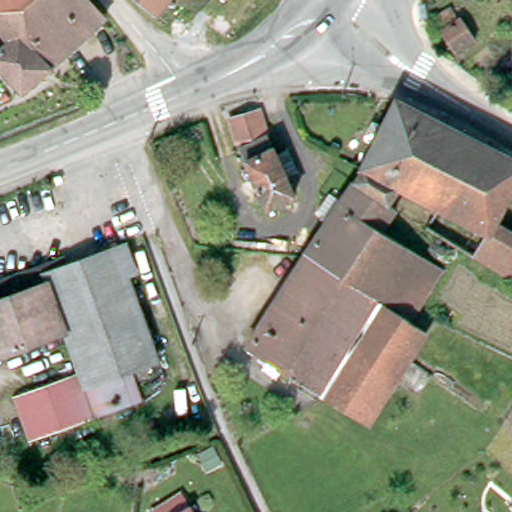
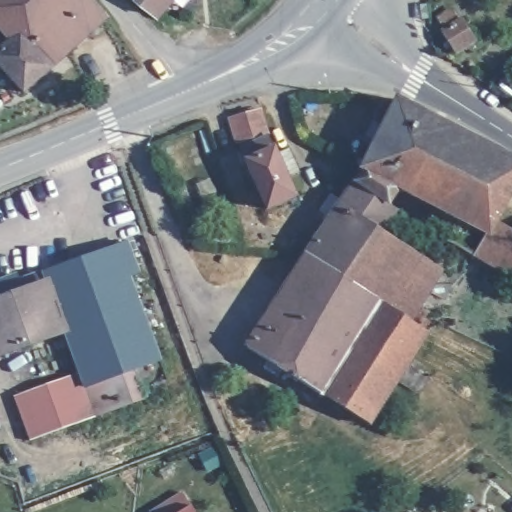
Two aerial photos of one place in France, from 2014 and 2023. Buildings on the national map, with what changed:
unchanged [(23,89),(0,63),(0,36),(5,41),(18,30),(11,21),(2,29),(0,26),(0,0),(93,0),(106,15),(67,49),(23,89)]
unchanged [(141,0),(165,0),(156,11),(141,0)]
unchanged [(428,22),(420,22),(417,5),(426,4),(428,22)]
unchanged [(440,32),(445,30),(437,17),(450,10),(457,21),(462,19),(476,40),(454,54),(440,32)]
unchanged [(501,206),(489,231),(440,206),(401,185),(390,201),(355,177),(362,166),(361,165),(375,137),(366,132),(373,117),(382,123),(396,95),(512,155),(512,184),(501,206)]
unchanged [(262,106),(269,130),(237,140),(230,115),(262,106)]
unchanged [(267,205),(240,145),(269,132),(277,150),(289,145),(299,170),(287,175),(296,193),(267,205)]
unchanged [(306,250),(355,177),(390,201),(397,206),(382,227),(442,265),(410,317),(306,250)]
unchanged [(460,245),(426,224),(440,206),(489,231),(501,206),(512,211),(512,277),(460,245)]
unchanged [(128,271),(160,357),(147,361),(151,372),(137,377),(144,396),(96,413),(85,383),(80,369),(65,328),(0,352),(0,278),(17,272),(67,254),(69,260),(127,239),(137,268),(128,271)]
unchanged [(265,365),(268,358),(247,345),(306,250),(410,317),(415,320),(427,328),(369,420),(323,392),(281,366),(277,373),(265,365)]
unchanged [(31,437),(14,393),(80,369),(85,383),(96,413),(31,437)]
unchanged [(149,510),(182,489),(190,502),(196,512),(151,512),(149,510)]

